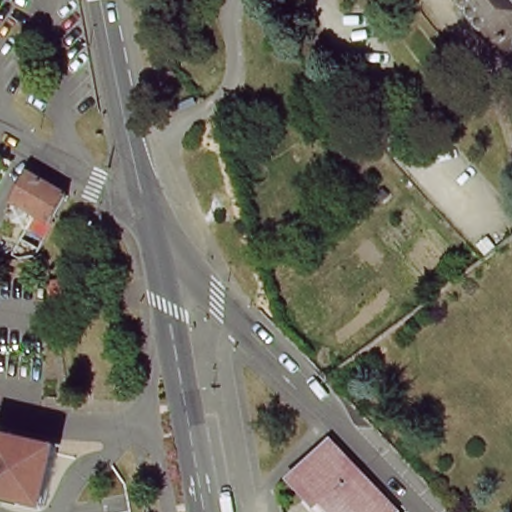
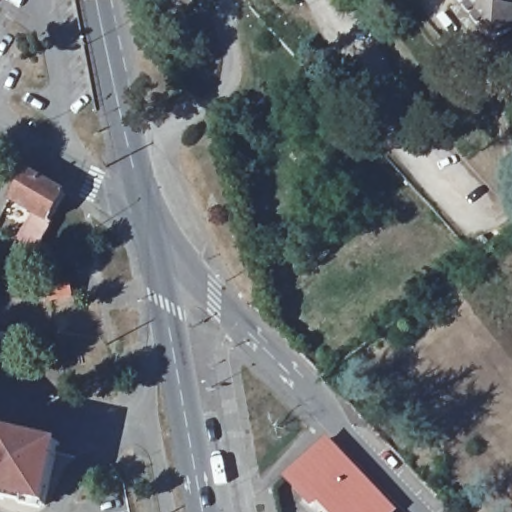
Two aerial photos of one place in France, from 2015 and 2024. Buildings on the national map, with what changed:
unchanged [(512,64),(499,64),(492,55),(495,44),(461,0),(512,0),(512,64)]
unchanged [(66,190),(52,215),(53,217),(36,251),(28,253),(19,255),(42,212),(11,194),(25,165),(66,190)]
unchanged [(69,279),(70,285),(72,297),(53,300),(50,282),(60,280),(69,279)]
unchanged [(0,495),(0,444),(1,439),(3,434),(3,431),(4,431),(22,435),(64,444),(63,452),(51,505),(0,495)]
unchanged [(395,511),(394,512),(333,512),(320,498),(315,503),(290,476),(328,440),(395,511)]

